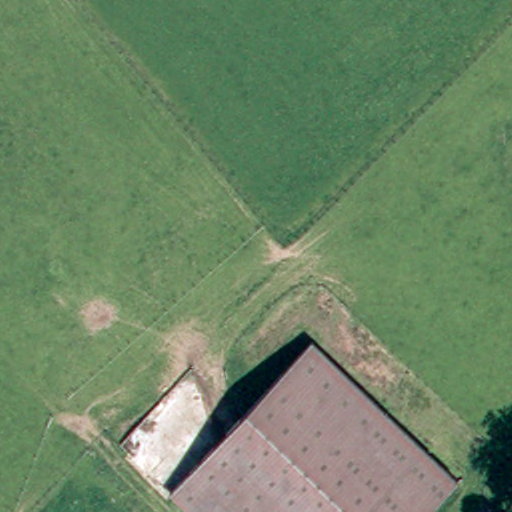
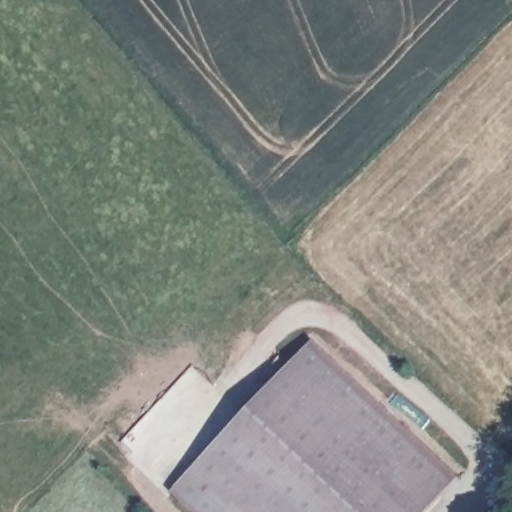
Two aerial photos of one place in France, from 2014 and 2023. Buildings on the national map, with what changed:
unchanged [(314,341),(458,472),(422,512),(199,512),(175,490),(314,341)]

